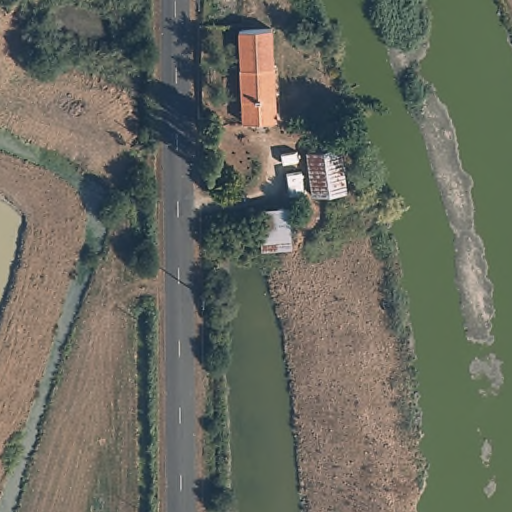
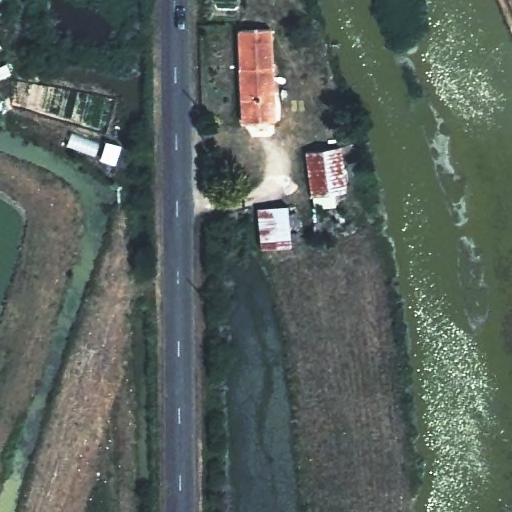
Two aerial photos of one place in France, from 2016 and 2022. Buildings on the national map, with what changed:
unchanged [(244,125),(241,35),(272,34),(275,124),(244,125)]
unchanged [(311,200),(310,159),(341,158),(342,199),(311,200)]
unchanged [(290,245),(262,246),(261,222),(260,208),(288,209),(288,213),(290,245)]

